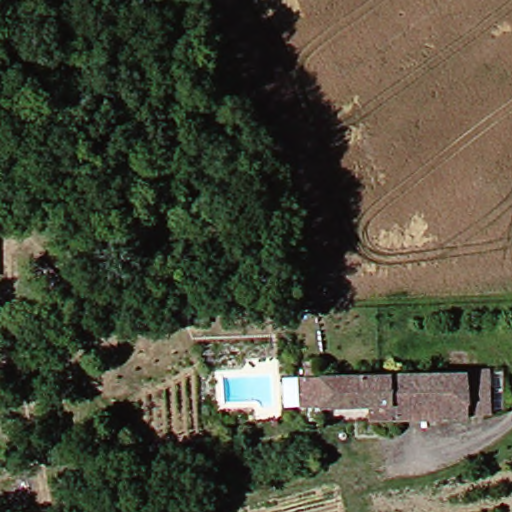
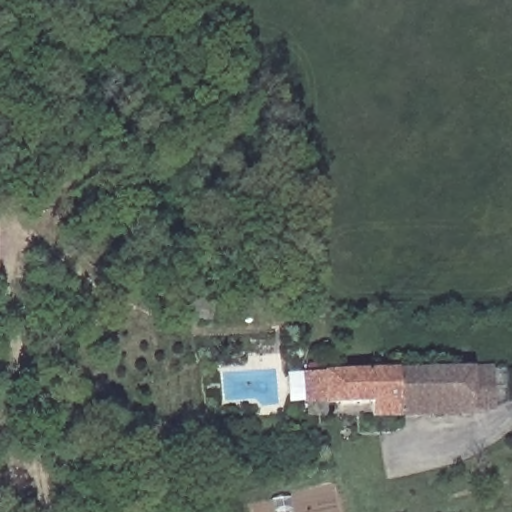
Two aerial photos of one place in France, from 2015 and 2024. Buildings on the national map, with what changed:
unchanged [(490,367),(490,412),(467,413),(467,368),(490,367)]
unchanged [(467,413),(365,417),(365,405),(316,406),(297,407),(297,375),(316,374),(467,368),(467,413)]

